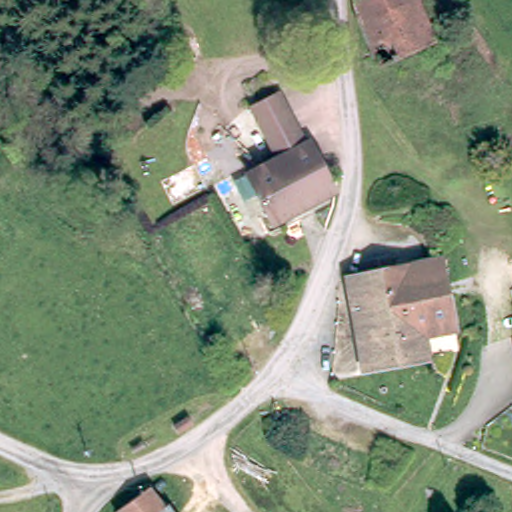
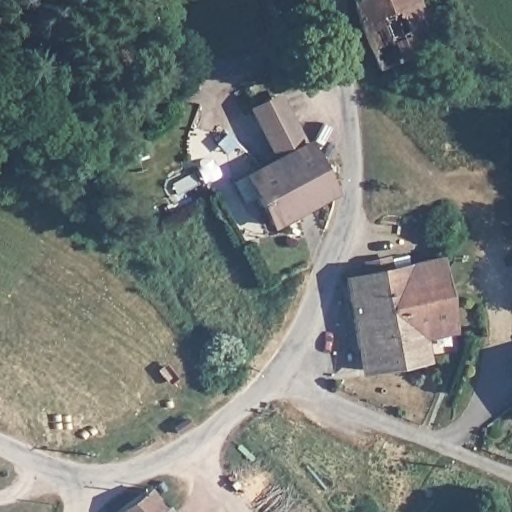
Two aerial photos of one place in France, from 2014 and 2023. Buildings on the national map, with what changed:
unchanged [(379,76),(360,35),(355,4),(362,0),(413,0),(436,50),(379,76)]
unchanged [(279,98),(299,135),(272,150),(252,113),(279,98)]
unchanged [(275,229),(249,180),(280,163),(272,150),(299,135),(307,149),(311,146),(339,193),(275,229)]
unchanged [(457,333),(432,339),(436,357),(366,374),(345,280),(367,276),(365,267),(381,263),(383,273),(441,262),(457,333)]
unchanged [(148,488),(164,508),(158,512),(116,512),(148,488)]
unchanged [(164,508),(167,505),(173,512),(158,512),(164,508)]

